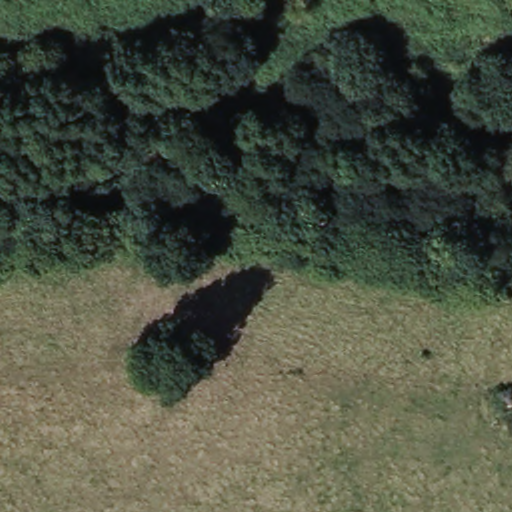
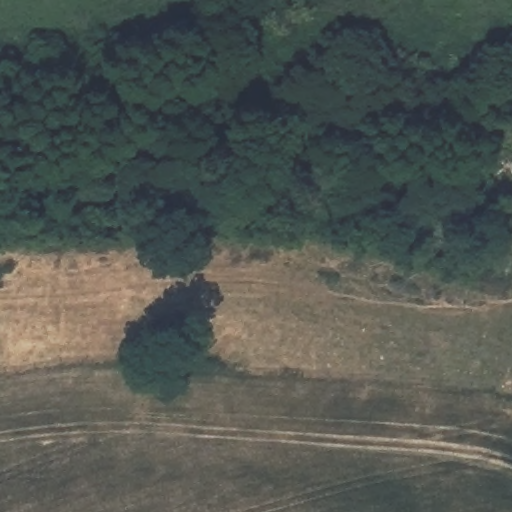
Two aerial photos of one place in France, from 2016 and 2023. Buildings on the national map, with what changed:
unchanged [(512,437),(505,438),(505,399),(512,398),(512,437)]

